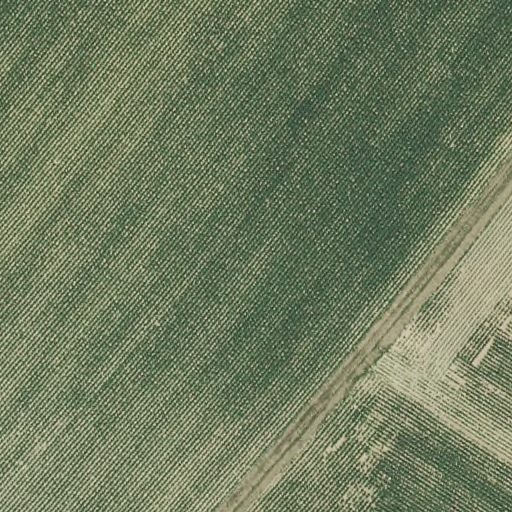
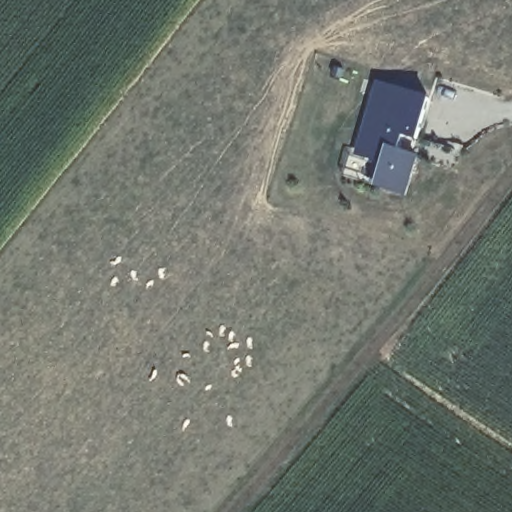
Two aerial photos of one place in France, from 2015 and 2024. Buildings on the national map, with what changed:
new [(439,98),(414,197),(383,191),(390,165),(358,156),(381,84),(439,98)]

